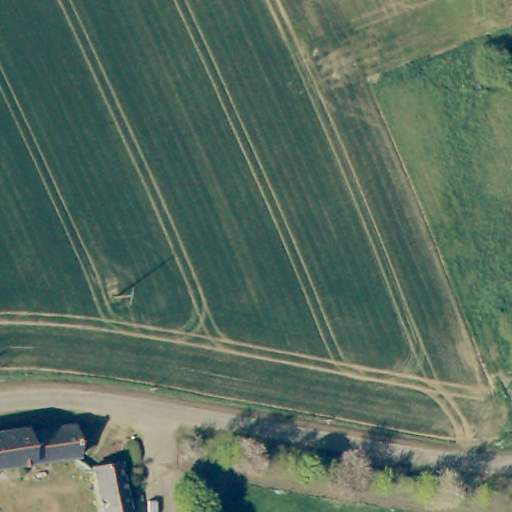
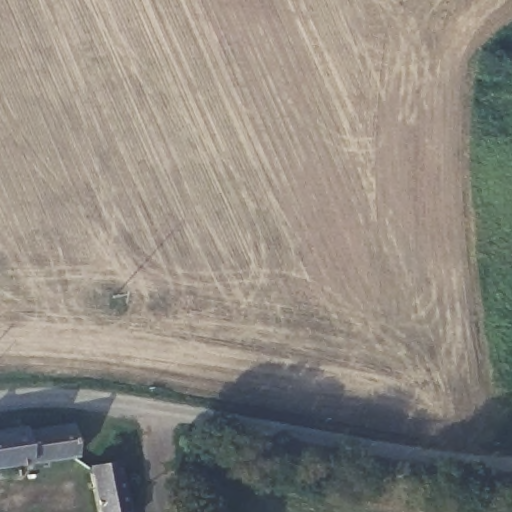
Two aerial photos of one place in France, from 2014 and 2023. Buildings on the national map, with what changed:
unchanged [(25,426),(25,429),(74,422),(78,456),(0,468),(0,430),(25,426)]
unchanged [(92,463),(117,459),(126,512),(99,512),(92,463)]

